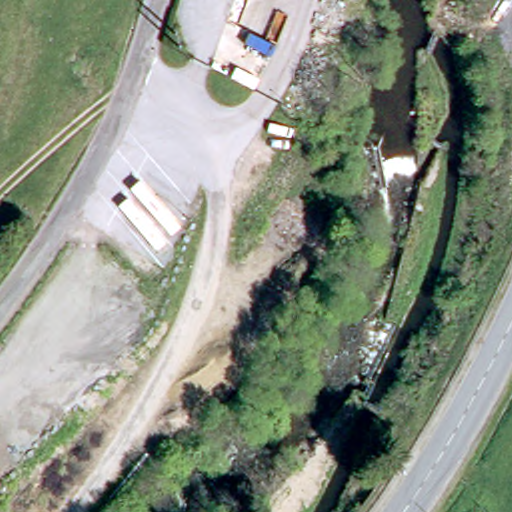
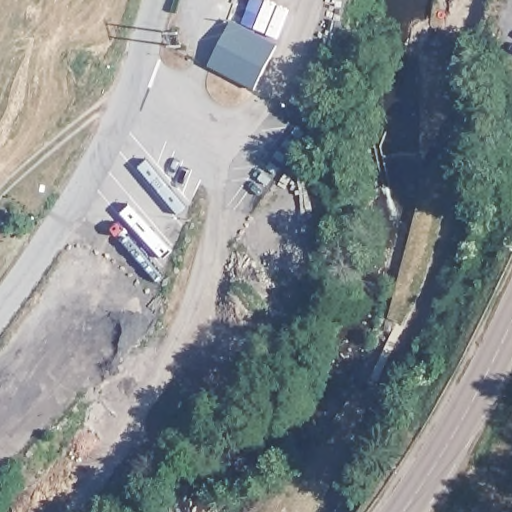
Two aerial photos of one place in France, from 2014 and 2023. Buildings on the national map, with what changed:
new [(279,44),(257,90),(210,67),(232,21),(279,44)]

